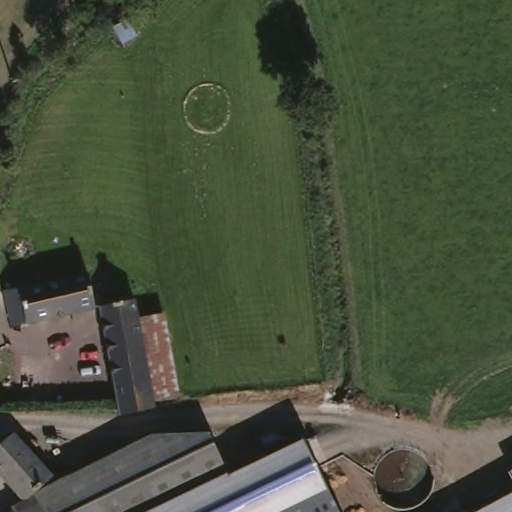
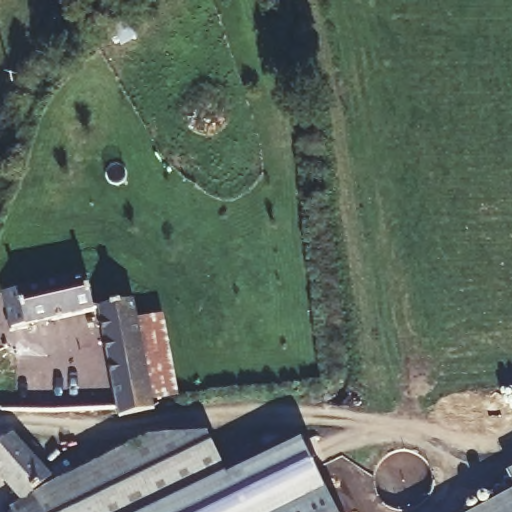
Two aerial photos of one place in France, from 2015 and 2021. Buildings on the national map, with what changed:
unchanged [(13,290),(26,287),(93,271),(93,272),(103,270),(108,292),(96,295),(99,307),(32,320),(20,323),(13,290)]
unchanged [(106,298),(141,292),(145,312),(161,393),(163,401),(130,408),(126,408),(106,298)]
unchanged [(184,387),(161,393),(145,312),(168,310),(184,387)]
unchanged [(0,370),(0,351),(4,352),(0,370)]
unchanged [(30,495),(0,463),(0,447),(19,430),(58,473),(30,495)]
unchanged [(212,431),(231,460),(305,435),(330,484),(345,512),(19,512),(30,495),(58,473),(142,433),(212,431)]
unchanged [(512,470),(512,478),(509,471),(512,470)]
unchanged [(512,492),(512,512),(474,512),(512,492)]

